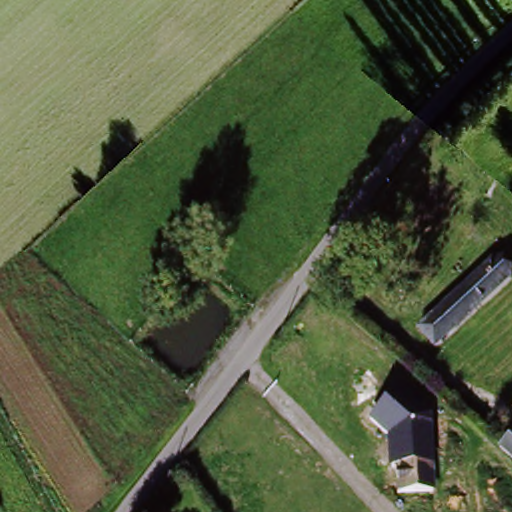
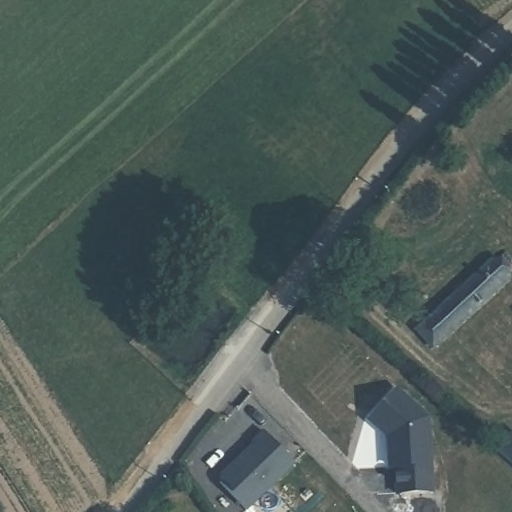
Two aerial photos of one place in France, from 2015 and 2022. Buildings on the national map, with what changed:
unchanged [(407,330),(488,255),(510,280),(427,355),(407,330)]
unchanged [(430,417),(435,494),(397,498),(395,465),(388,465),(387,437),(371,422),(399,390),(430,417)]
unchanged [(487,452),(508,432),(512,435),(512,473),(487,452)]
new [(222,481),(255,448),(253,447),(265,435),(296,467),(251,512),(247,512),(222,487),(222,481)]

